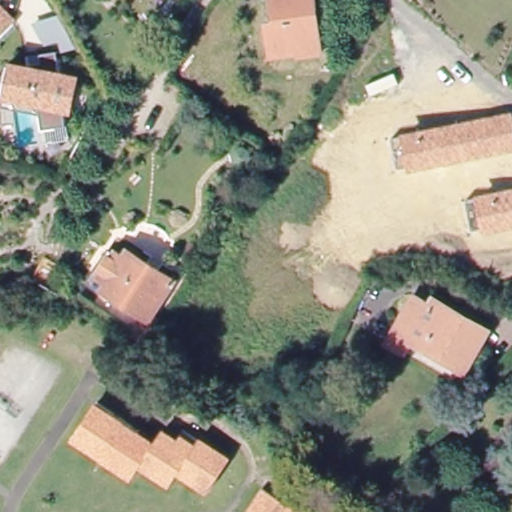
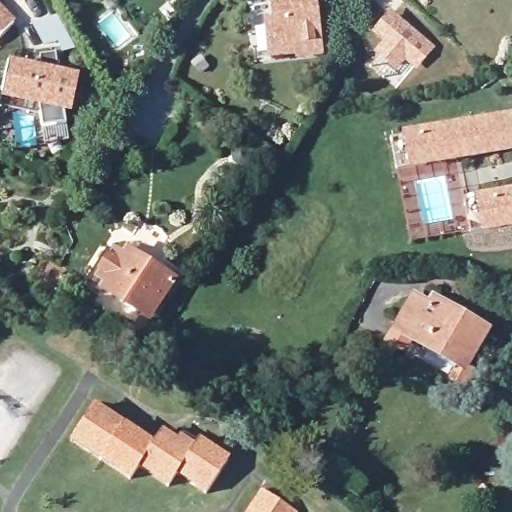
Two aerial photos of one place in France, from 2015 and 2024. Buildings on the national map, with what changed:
unchanged [(314,59),(296,60),(296,57),(266,61),(263,30),(271,29),(269,2),(242,4),(241,0),(307,0),(314,59)]
new [(389,8),(436,45),(417,69),(405,60),(398,69),(363,42),(389,8)]
unchanged [(0,43),(0,9),(17,26),(0,43)]
unchanged [(59,19),(66,32),(71,42),(46,47),(36,27),(59,19)]
unchanged [(0,109),(0,66),(16,66),(12,56),(25,51),(40,45),(49,67),(66,67),(65,99),(61,99),(66,115),(70,122),(72,129),(65,131),(50,137),(45,123),(39,110),(0,109)]
unchanged [(401,133),(512,111),(512,152),(410,171),(408,165),(396,167),(390,137),(401,133)]
unchanged [(475,196),(512,189),(512,228),(484,234),(484,229),(470,232),(465,201),(475,196)]
unchanged [(127,252),(172,282),(149,317),(96,282),(115,254),(123,259),(127,252)]
unchanged [(393,353),(400,340),(419,308),(433,316),(437,310),(491,342),(468,381),(464,378),(414,348),(407,361),(393,353)]
unchanged [(178,473),(173,483),(143,463),(137,472),(134,476),(105,456),(75,436),(78,432),(98,402),(159,440),(166,428),(181,438),(184,434),(199,443),(204,436),(233,456),(214,485),(211,489),(180,470),(178,473)]
unchanged [(264,491),(294,511),(293,512),(245,512),(260,488),(264,491)]

